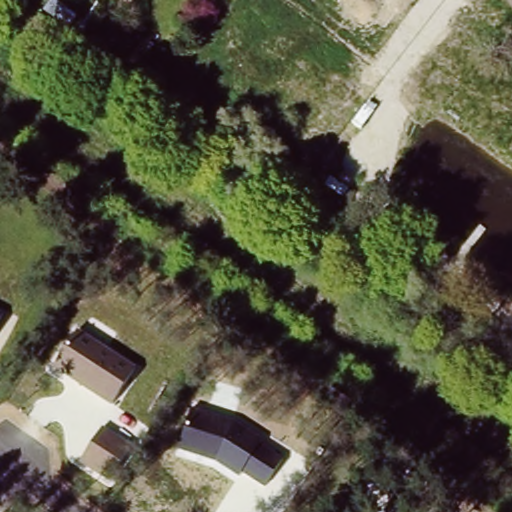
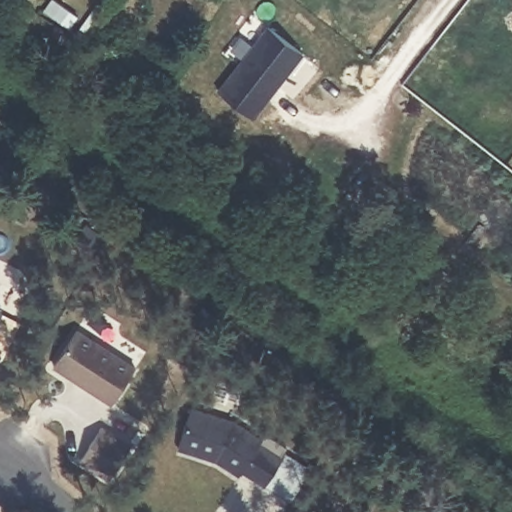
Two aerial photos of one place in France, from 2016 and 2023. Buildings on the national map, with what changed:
new [(255,120),(220,94),(268,26),(304,54),(255,120)]
unchanged [(2,313),(0,317),(0,311),(2,313)]
unchanged [(52,367),(78,332),(138,370),(111,405),(52,367)]
unchanged [(194,405),(234,419),(290,454),(262,488),(242,474),(239,479),(215,462),(179,452),(194,405)]
unchanged [(79,462),(102,426),(132,445),(107,481),(79,462)]

